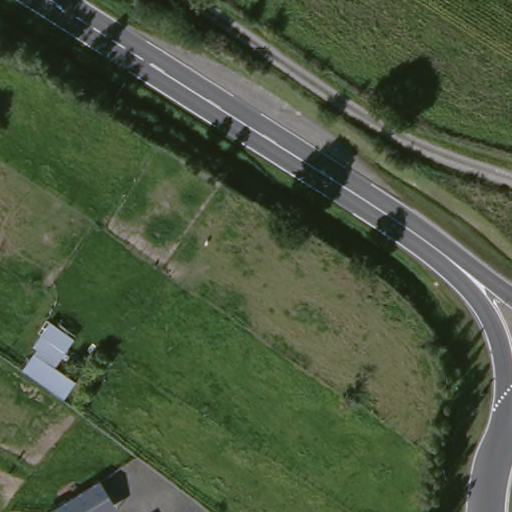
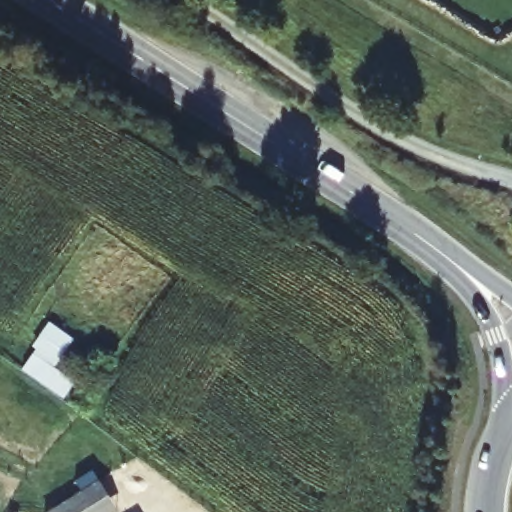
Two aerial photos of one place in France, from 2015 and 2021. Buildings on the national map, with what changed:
unchanged [(52,325),(79,342),(59,372),(33,354),(52,325)]
unchanged [(59,372),(74,383),(61,401),(21,371),(33,354),(59,372)]
unchanged [(97,482),(118,512),(45,512),(97,482)]

